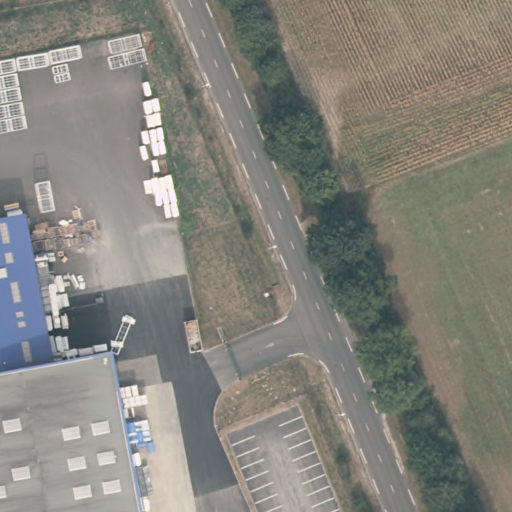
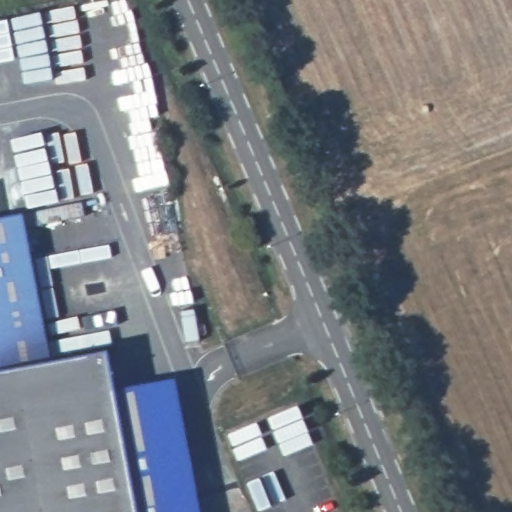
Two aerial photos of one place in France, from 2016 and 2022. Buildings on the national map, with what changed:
new [(22,209),(0,212),(0,148),(8,146),(22,209)]
unchanged [(52,365),(0,375),(0,219),(23,215),(52,365)]
unchanged [(107,355),(137,512),(0,512),(0,375),(52,365),(107,355)]
new [(172,380),(198,512),(137,512),(114,390),(172,380)]

